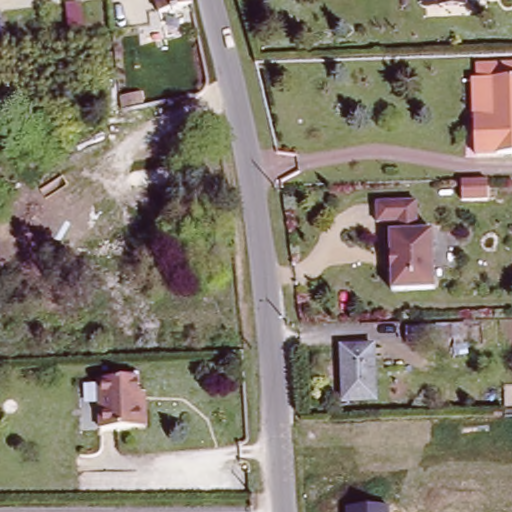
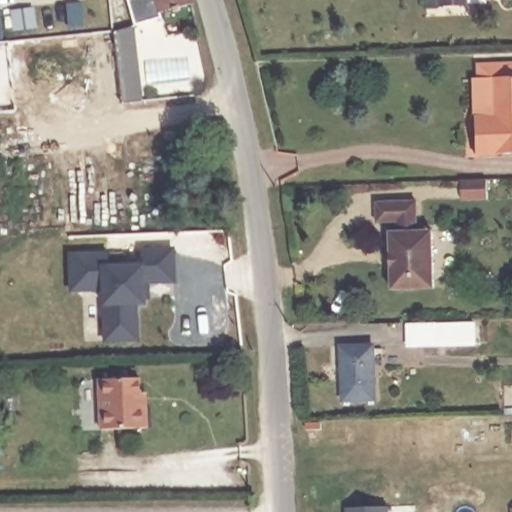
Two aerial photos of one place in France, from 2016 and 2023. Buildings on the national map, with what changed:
unchanged [(160,11),(157,0),(192,0),(160,11)]
unchanged [(429,0),(470,0),(470,2),(442,4),(442,1),(429,2),(429,0)]
unchanged [(480,157),(475,76),(512,77),(512,155),(480,157)]
unchanged [(416,201),(417,230),(432,231),(433,292),(391,294),(390,230),(389,223),(377,224),(378,202),(416,201)]
new [(103,290),(70,291),(69,251),(110,249),(110,262),(141,262),(141,248),(173,246),(175,283),(145,285),(145,305),(135,306),(138,341),(103,342),(103,290)]
unchanged [(377,348),(377,400),(347,400),(347,347),(377,348)]
unchanged [(140,401),(148,401),(148,423),(103,423),(103,374),(140,374),(140,401)]
unchanged [(389,507),(389,512),(348,512),(348,509),(389,507)]

